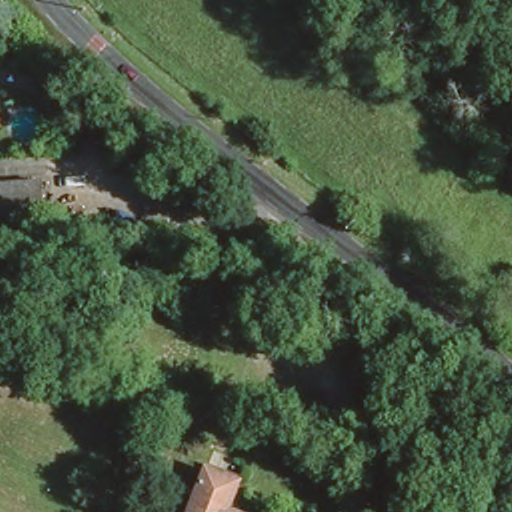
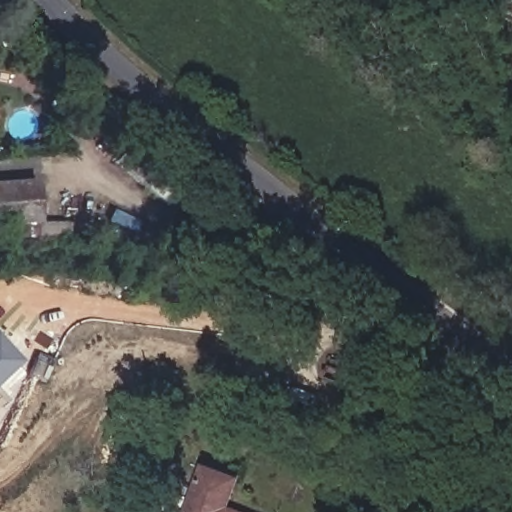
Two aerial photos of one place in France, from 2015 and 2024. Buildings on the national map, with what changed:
unchanged [(36,180),(38,226),(0,228),(0,183),(36,180)]
new [(26,361),(0,387),(0,335),(26,361)]
unchanged [(237,483),(228,504),(247,512),(188,512),(204,469),(237,483)]

